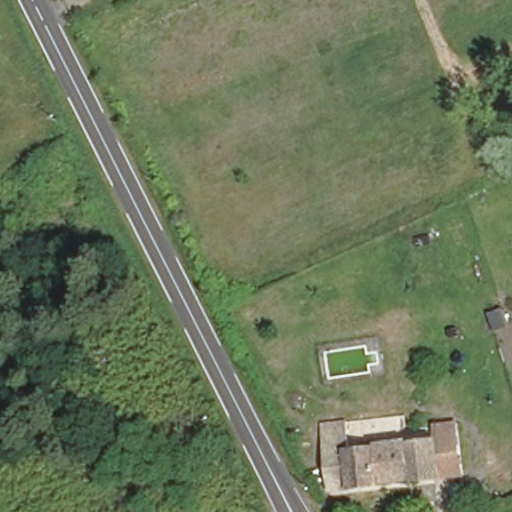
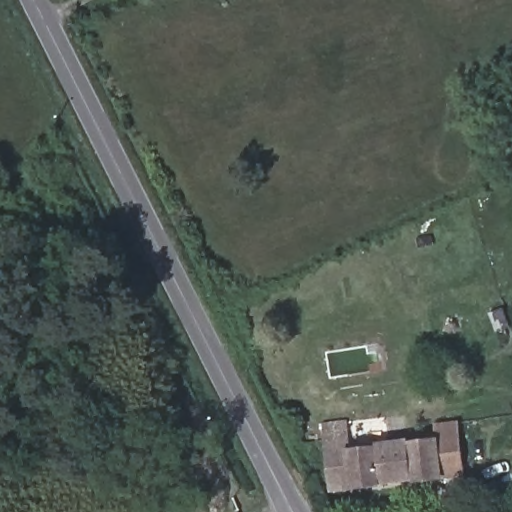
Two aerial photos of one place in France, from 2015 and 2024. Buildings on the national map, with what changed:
unchanged [(334,424),(359,421),(363,449),(438,439),(437,424),(444,423),(454,421),(458,449),(459,449),(463,476),(454,477),(344,493),(334,424)]

